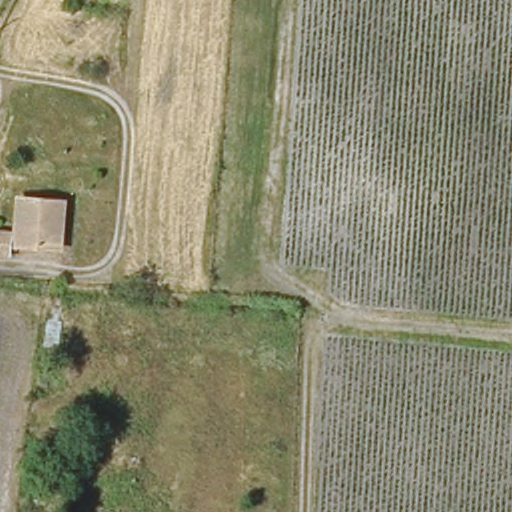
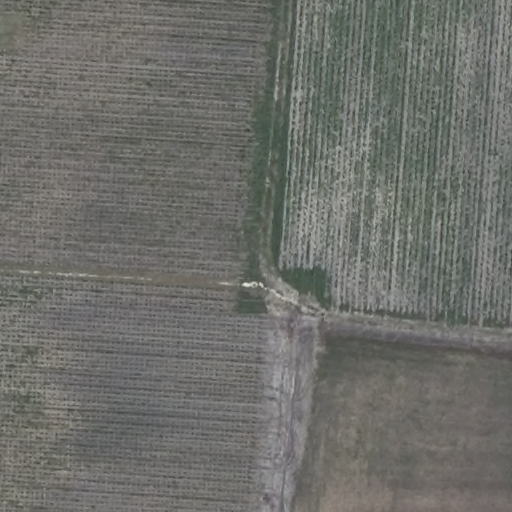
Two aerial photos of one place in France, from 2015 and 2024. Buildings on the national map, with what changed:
demolished [(59,249),(25,247),(26,257),(0,255),(0,227),(11,227),(11,218),(22,219),(23,200),(61,201),(59,249)]

